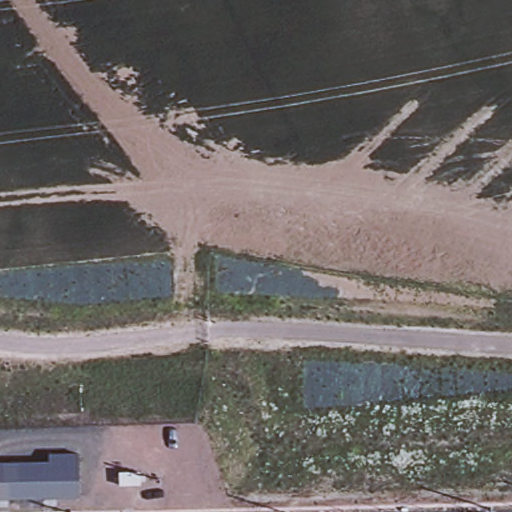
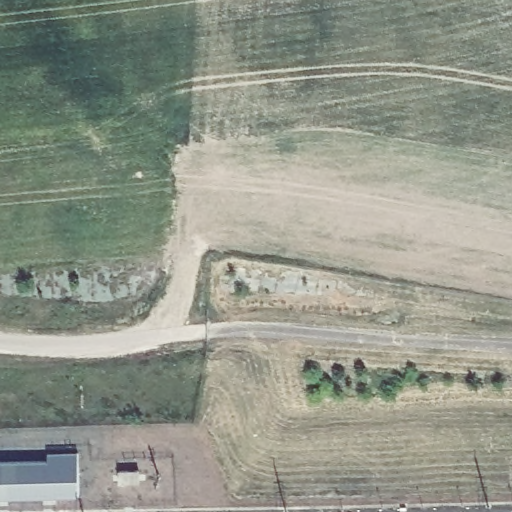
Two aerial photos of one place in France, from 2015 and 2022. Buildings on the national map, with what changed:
unchanged [(0,498),(0,461),(49,458),(49,452),(78,450),(79,493),(0,498)]

